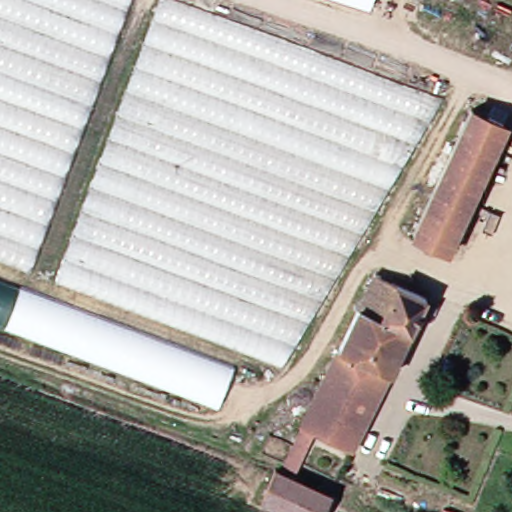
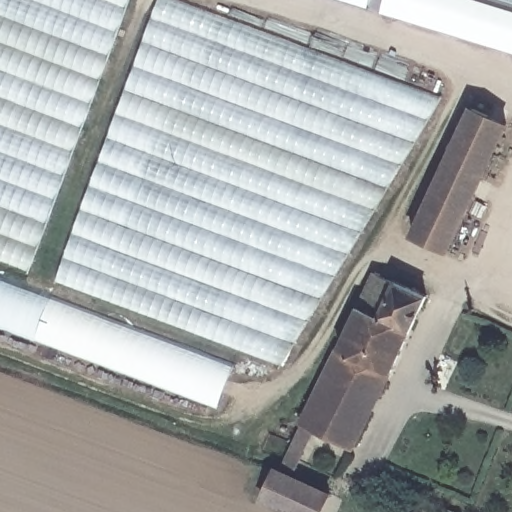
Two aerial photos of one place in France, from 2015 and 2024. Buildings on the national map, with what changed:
unchanged [(37,272),(0,258),(0,0),(135,0),(37,272)]
unchanged [(170,0),(180,0),(448,101),(290,364),(65,285),(170,0)]
unchanged [(364,0),(373,0),(372,3),(364,0)]
new [(383,7),(372,3),(373,0),(512,0),(512,51),(382,11),(383,7)]
unchanged [(512,136),(451,252),(420,236),(483,115),(512,128),(512,136)]
unchanged [(347,467),(302,445),(386,267),(437,293),(347,467)]
unchanged [(242,368),(222,408),(0,323),(0,276),(242,368)]
unchanged [(311,512),(268,494),(282,465),(336,489),(326,512),(311,512)]

